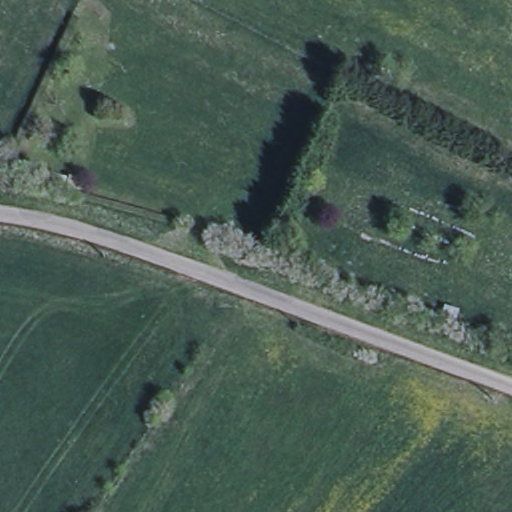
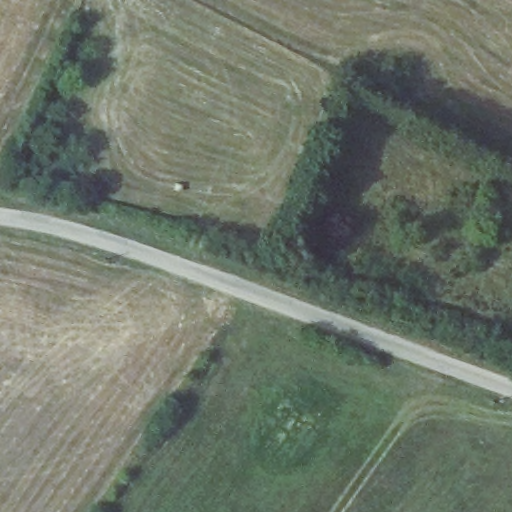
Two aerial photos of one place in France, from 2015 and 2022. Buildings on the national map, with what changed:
unchanged [(56,138),(64,117),(76,120),(73,132),(70,142),(56,138)]

